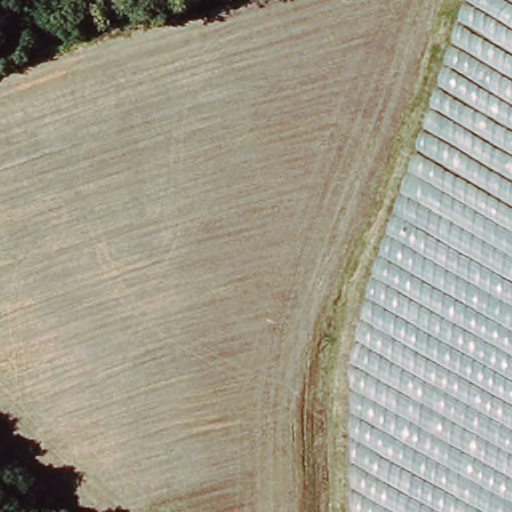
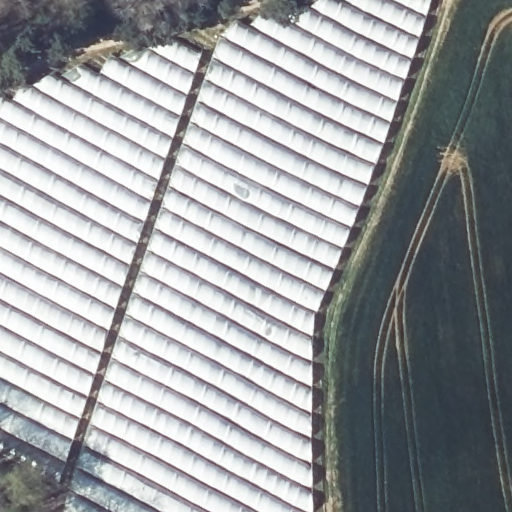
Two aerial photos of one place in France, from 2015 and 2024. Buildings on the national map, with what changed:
demolished [(116,42),(221,5),(241,0),(431,0),(408,83),(368,190),(332,291),(325,367),(316,441),(227,467),(153,488),(95,504),(69,512),(58,512),(0,460),(0,81),(116,42)]
new [(10,101),(23,80),(31,85),(49,71),(63,78),(70,82),(76,73),(73,69),(78,65),(98,75),(111,53),(129,63),(144,44),(167,56),(173,41),(202,54),(195,73),(167,153),(148,215),(153,217),(160,201),(211,56),(234,19),(248,26),(266,3),(292,19),(300,4),(312,9),(320,0),(336,0),(341,2),(343,0),(431,0),(382,145),(314,318),(311,341),(311,438),(312,512),(63,512),(59,510),(67,490),(82,446),(91,409),(86,407),(65,461),(0,429),(0,95),(10,101)]
demolished [(370,279),(465,0),(512,0),(512,512),(351,512),(346,366),(370,279)]

